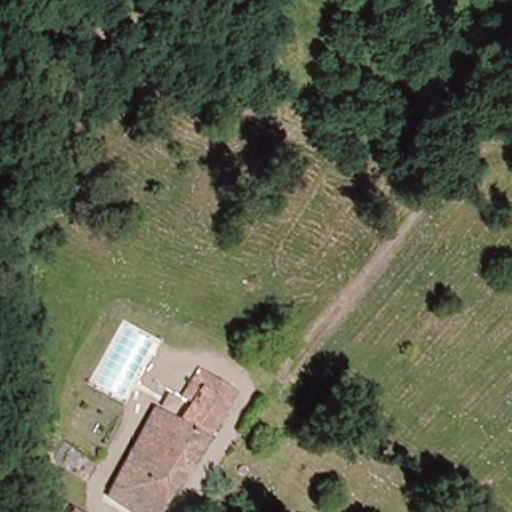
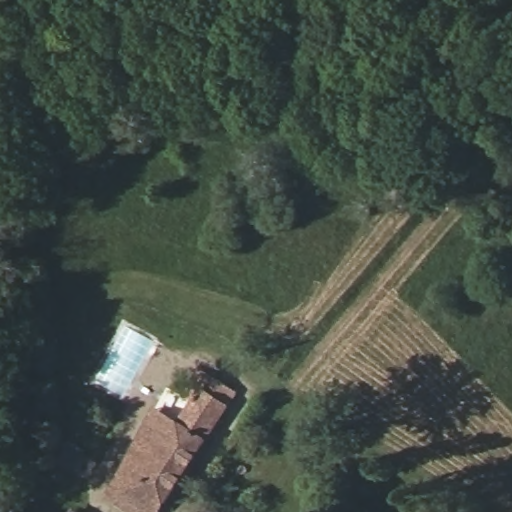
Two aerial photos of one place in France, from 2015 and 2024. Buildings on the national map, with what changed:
unchanged [(158,412),(178,423),(179,424),(182,426),(186,426),(189,424),(191,421),(190,417),(188,414),(180,407),(189,394),(206,366),(227,381),(238,388),(225,409),(229,410),(232,413),(234,417),(233,421),(230,424),(226,425),(222,425),(219,422),(218,421),(163,512),(130,512),(109,499),(137,449),(158,412)]

